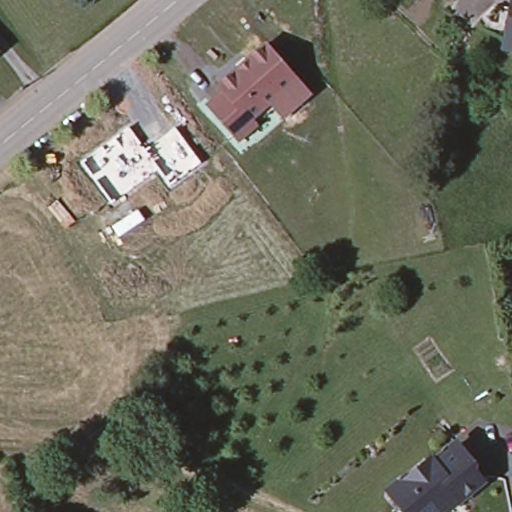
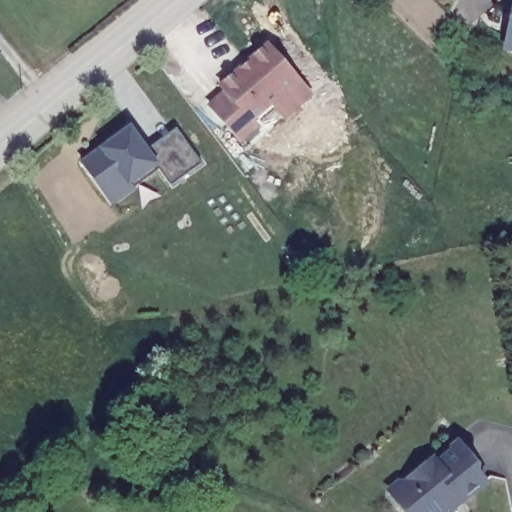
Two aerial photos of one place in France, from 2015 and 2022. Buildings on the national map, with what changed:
unchanged [(510,44),(512,33),(512,44),(510,44)]
unchanged [(281,117),(269,101),(249,118),(253,124),(235,138),(206,103),(222,90),(217,84),(265,44),(296,79),(309,94),(281,117)]
unchanged [(0,55),(0,51),(2,53),(0,55)]
new [(201,164),(170,185),(158,170),(133,188),(135,190),(111,206),(78,160),(130,124),(148,148),(176,128),(201,164)]
unchanged [(461,449),(478,470),(475,472),(485,486),(460,506),(458,503),(447,512),(404,512),(391,497),(434,462),(438,468),(461,449)]

